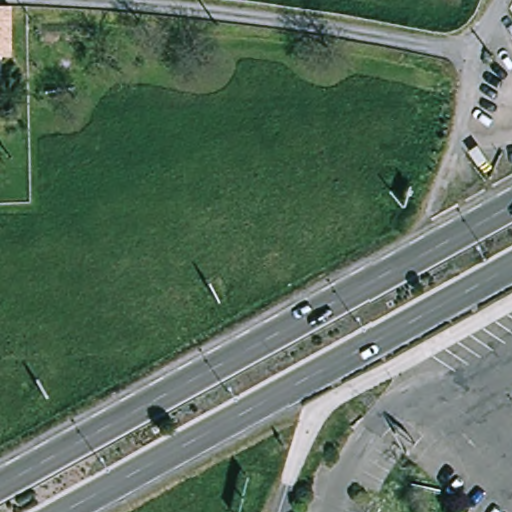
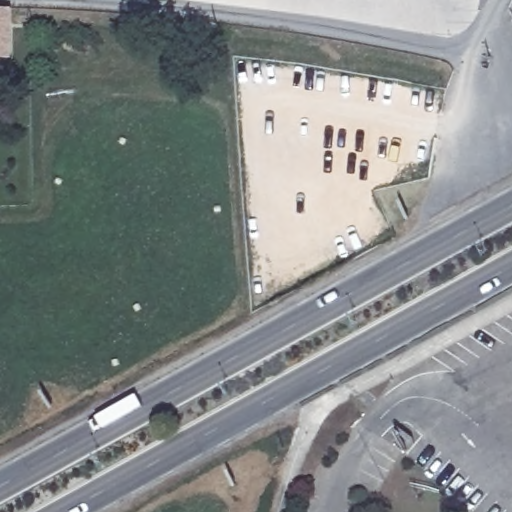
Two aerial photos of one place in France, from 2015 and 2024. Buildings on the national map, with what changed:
unchanged [(0,71),(0,5),(2,5),(16,6),(17,71),(0,71)]

